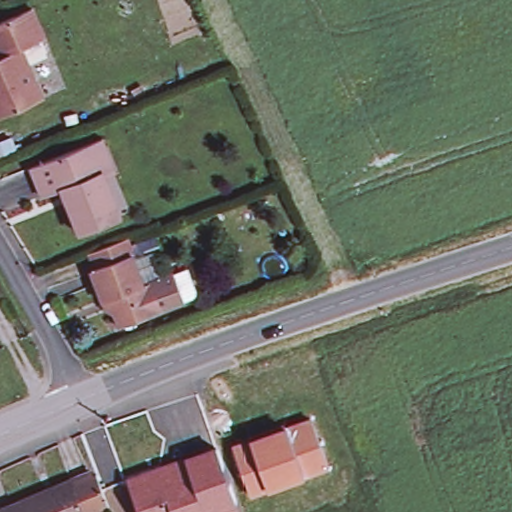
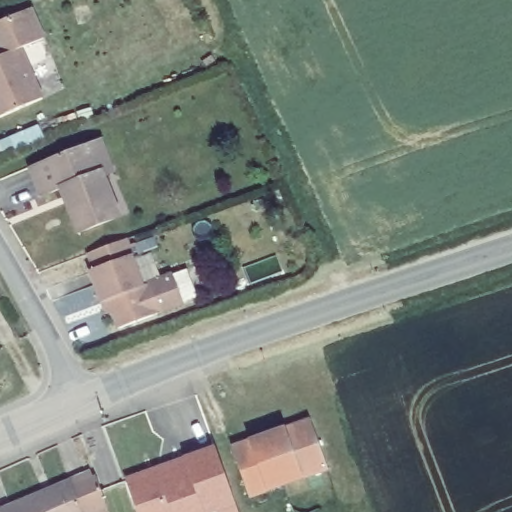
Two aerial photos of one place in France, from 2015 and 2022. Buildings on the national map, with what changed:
unchanged [(40,42),(16,53),(21,62),(0,71),(0,23),(27,12),(40,42)]
unchanged [(38,102),(0,117),(0,71),(21,62),(38,102)]
unchanged [(99,140),(112,174),(104,177),(117,216),(77,232),(61,189),(39,197),(27,167),(80,147),(99,140)]
unchanged [(154,239),(159,249),(144,255),(140,245),(154,239)]
unchanged [(108,313),(94,275),(99,272),(92,254),(127,241),(144,290),(149,287),(161,317),(121,332),(117,320),(111,321),(108,313)]
unchanged [(187,272),(200,300),(161,317),(149,287),(187,272)]
unchanged [(247,498),(230,451),(284,432),(308,424),(310,429),(325,470),(247,498)]
unchanged [(218,512),(138,512),(128,483),(218,451),(237,505),(218,512)]
unchanged [(90,473),(92,478),(104,511),(100,512),(0,512),(0,504),(41,490),(90,473)]

